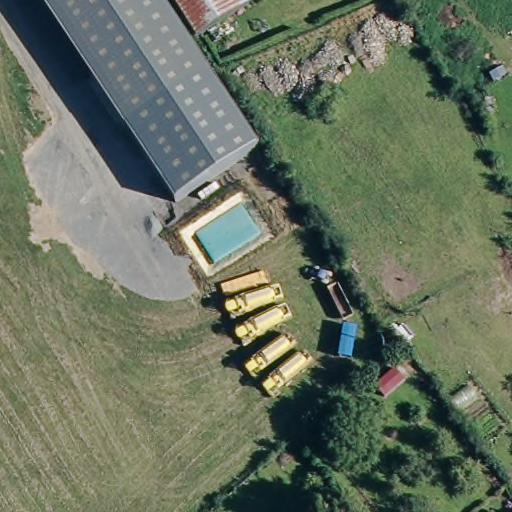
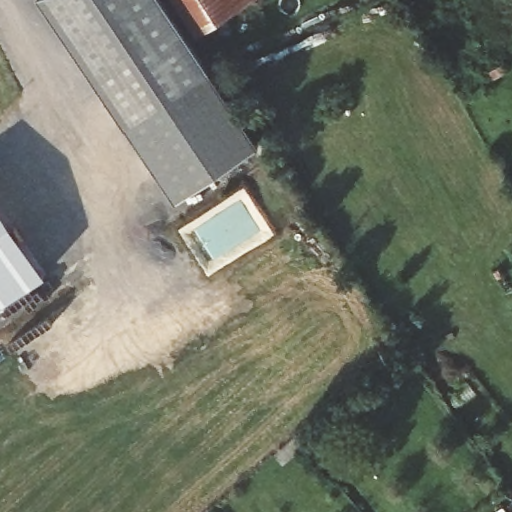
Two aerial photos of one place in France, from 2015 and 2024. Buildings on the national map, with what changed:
unchanged [(163,0),(208,67),(127,123),(43,0),(163,0)]
unchanged [(195,31),(176,0),(265,0),(266,2),(195,31)]
unchanged [(130,121),(206,69),(258,146),(177,197),(127,123),(130,121)]
new [(46,276),(0,306),(0,206),(46,276)]

